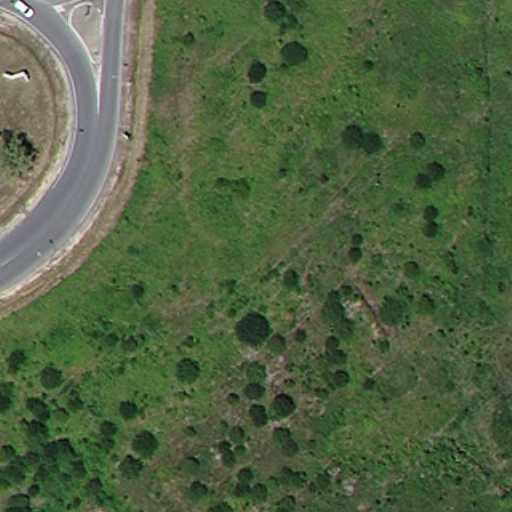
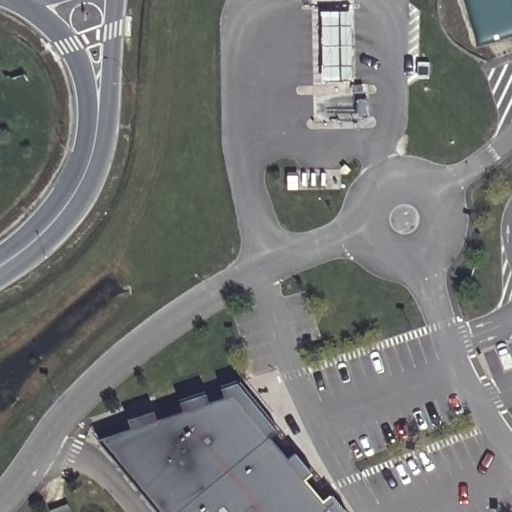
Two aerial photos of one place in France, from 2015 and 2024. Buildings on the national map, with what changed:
new [(325,13),(356,12),(357,81),(327,82),(325,13)]
new [(132,429),(130,421),(157,412),(160,420),(185,412),(182,403),(209,395),(211,402),(227,398),(224,390),(240,386),(279,431),(272,436),(290,460),(297,454),(313,472),(307,480),(325,503),(332,496),(345,512),(160,512),(101,441),(132,429)]

